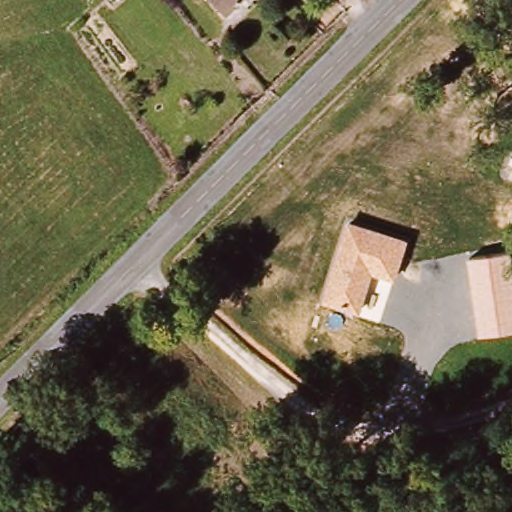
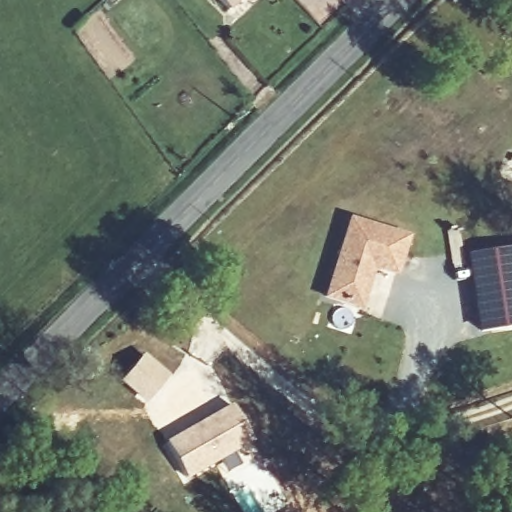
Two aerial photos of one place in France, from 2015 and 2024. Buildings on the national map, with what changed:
unchanged [(228,0),(240,0),(234,6),(228,0)]
unchanged [(360,311),(323,300),(349,218),(409,236),(396,277),(373,270),(360,311)]
unchanged [(479,333),(468,255),(512,249),(512,328),(479,333)]
new [(169,376),(145,403),(119,382),(143,355),(169,376)]
new [(230,405),(253,442),(186,479),(164,442),(230,405)]

